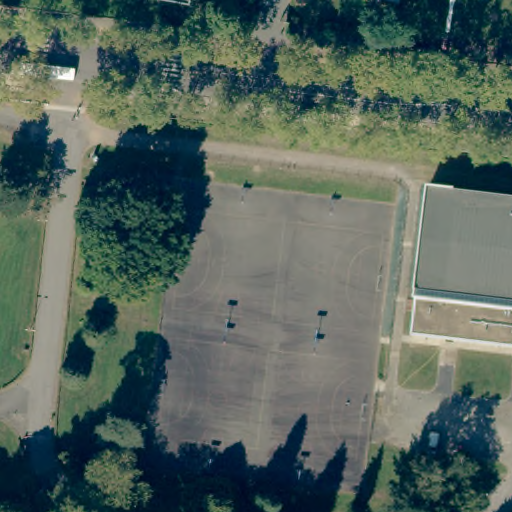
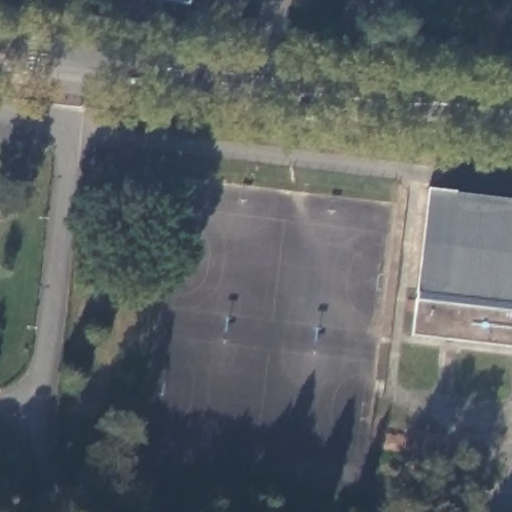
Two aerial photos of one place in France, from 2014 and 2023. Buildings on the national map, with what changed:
unchanged [(157,0),(188,0),(187,6),(157,0)]
unchanged [(441,334),(412,330),(417,294),(429,184),(512,194),(512,341),(458,336),(441,334)]

